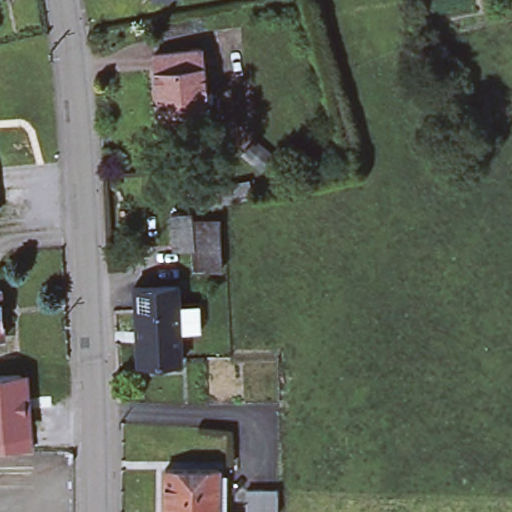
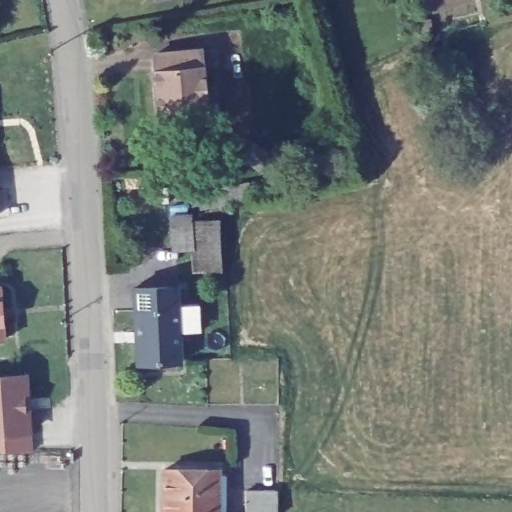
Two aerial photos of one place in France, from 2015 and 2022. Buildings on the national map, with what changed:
unchanged [(221,121),(209,122),(162,126),(156,70),(155,54),(202,49),(204,65),(205,80),(217,79),(221,121)]
unchanged [(276,158),(265,170),(250,158),(262,144),(276,158)]
unchanged [(218,216),(221,267),(202,269),(195,269),(191,224),(190,218),(195,218),(218,216)]
unchanged [(1,284),(3,337),(0,337),(0,284),(1,284)]
unchanged [(137,362),(135,309),(135,288),(180,285),(180,306),(183,360),(137,362)]
unchanged [(0,445),(0,371),(27,369),(32,374),(35,426),(36,446),(0,445)]
unchanged [(220,468),(220,474),(227,474),(226,512),(166,512),(166,467),(220,468)]
unchanged [(280,489),(279,512),(248,512),(248,489),(280,489)]

